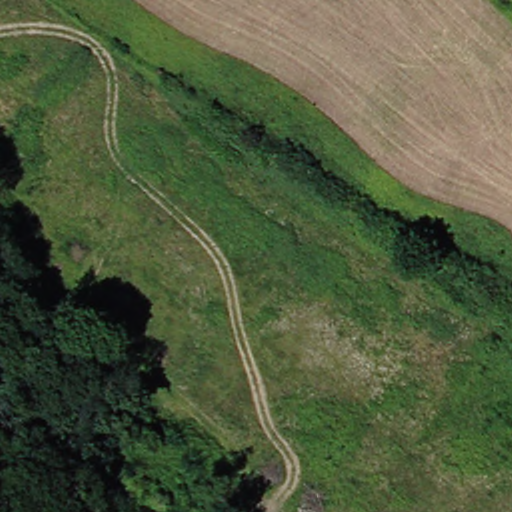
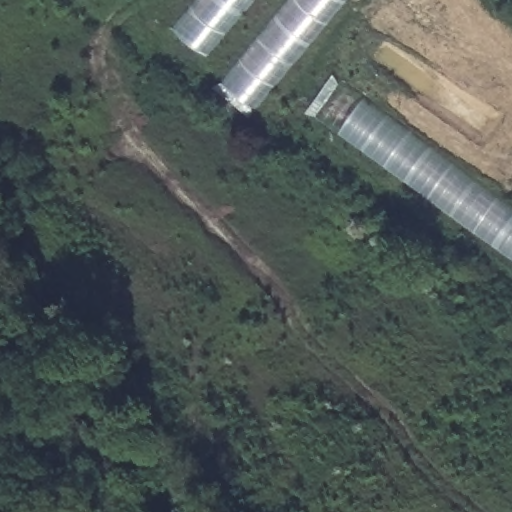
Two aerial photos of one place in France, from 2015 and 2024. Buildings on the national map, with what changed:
new [(257,0),(205,64),(169,36),(199,0),(257,0)]
new [(347,0),(252,116),(217,88),(290,0),(347,0)]
new [(512,203),(512,262),(313,120),(343,81),(512,203)]

